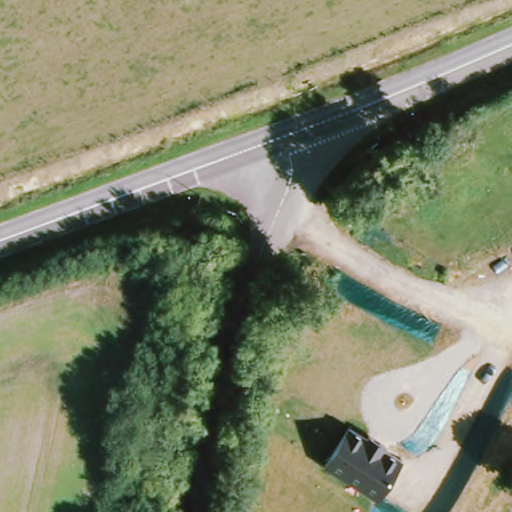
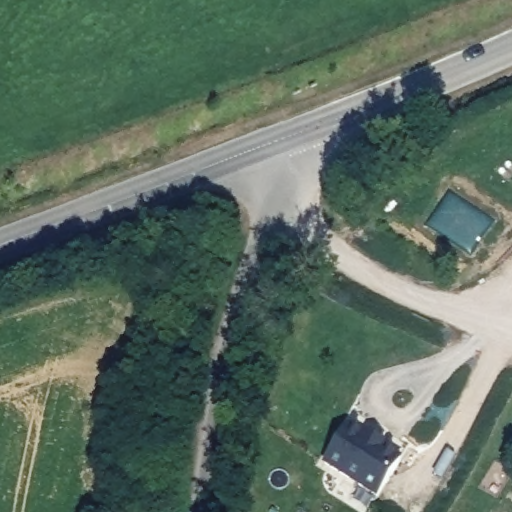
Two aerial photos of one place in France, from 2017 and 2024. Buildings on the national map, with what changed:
unchanged [(324,463),(347,423),(367,436),(368,433),(387,443),(386,447),(403,458),(377,497),(324,463)]

